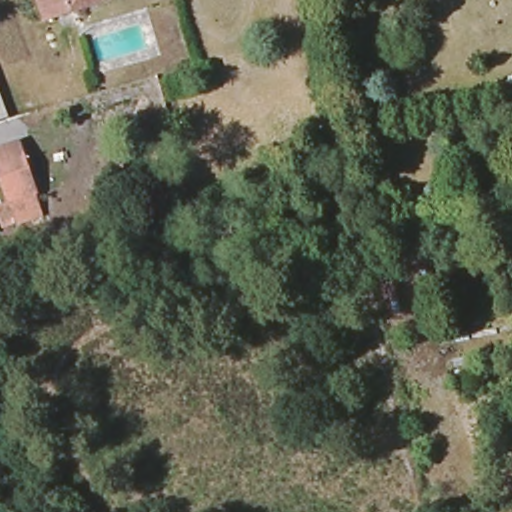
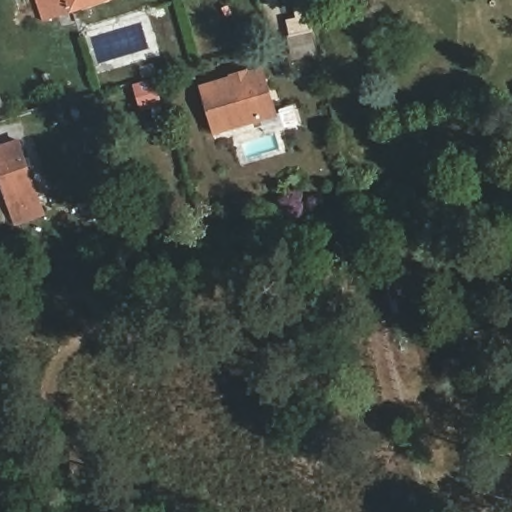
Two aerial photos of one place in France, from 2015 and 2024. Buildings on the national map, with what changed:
unchanged [(44,24),(36,0),(105,0),(72,13),(44,24)]
demolished [(444,0),(461,0),(445,4),(444,0)]
new [(263,66),(278,115),(214,135),(197,85),(229,75),(227,74),(247,67),(249,70),(263,66)]
unchanged [(0,188),(0,147),(19,141),(40,208),(10,218),(0,188)]
demolished [(497,209),(495,185),(512,183),(512,206),(497,209)]

